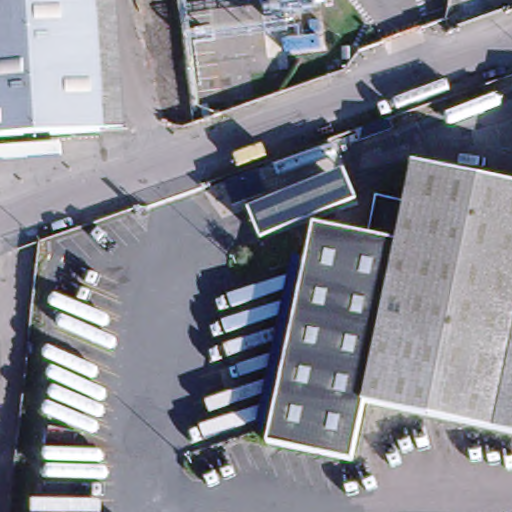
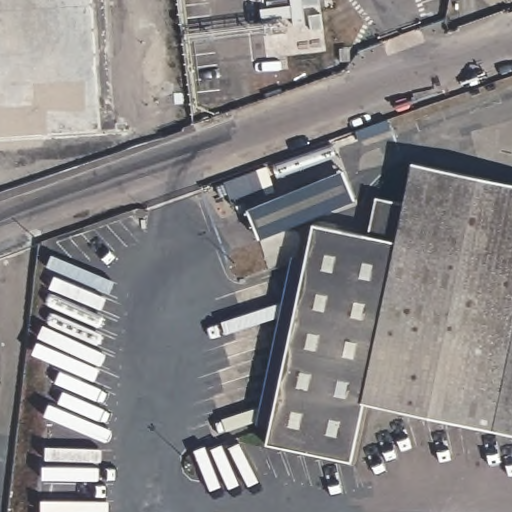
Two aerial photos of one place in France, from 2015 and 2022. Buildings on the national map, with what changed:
demolished [(100,128),(0,134),(0,0),(92,0),(100,128)]
unchanged [(366,401),(407,203),(416,163),(512,183),(512,432),(370,402),(366,401)]
unchanged [(357,462),(271,444),(275,427),(275,426),(266,400),(279,395),(272,373),(285,369),(278,347),(291,343),(283,321),(296,317),(289,295),(302,291),(295,268),(309,264),(310,259),(317,224),(371,236),(379,197),(407,203),(366,401),(370,402),(357,462)]

